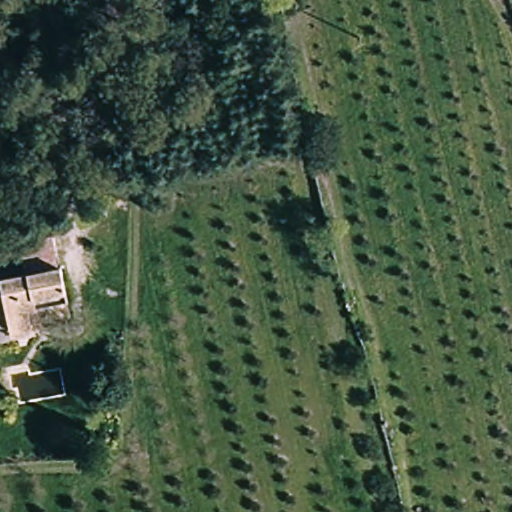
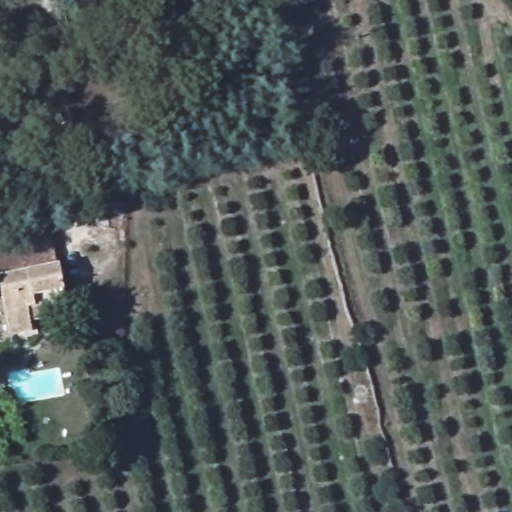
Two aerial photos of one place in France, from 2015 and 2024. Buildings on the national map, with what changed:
unchanged [(35,333),(6,338),(4,328),(0,305),(0,279),(55,269),(61,306),(63,318),(33,324),(35,333)]

